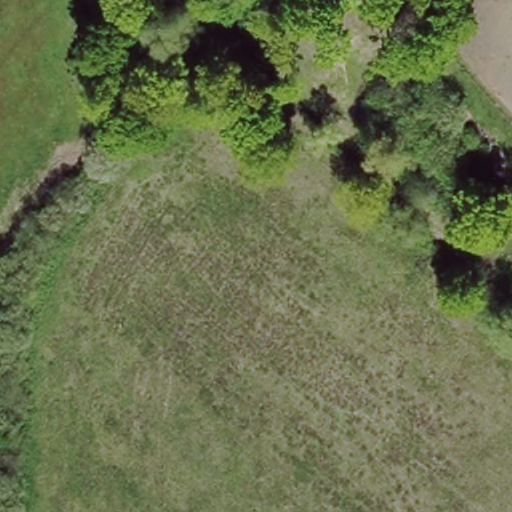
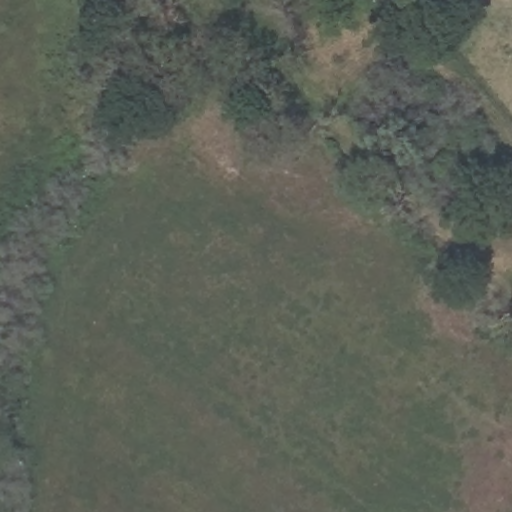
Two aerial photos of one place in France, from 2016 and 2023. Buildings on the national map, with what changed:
[]

